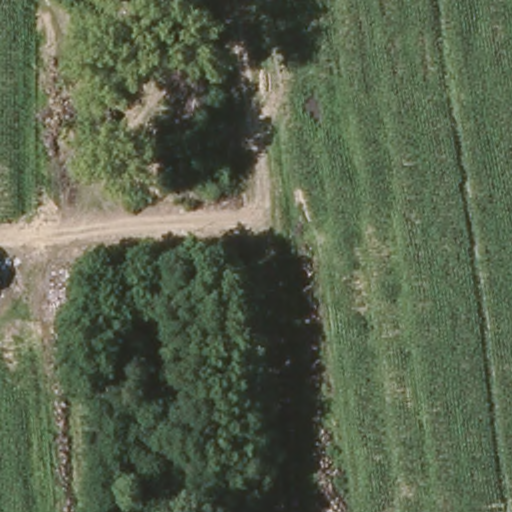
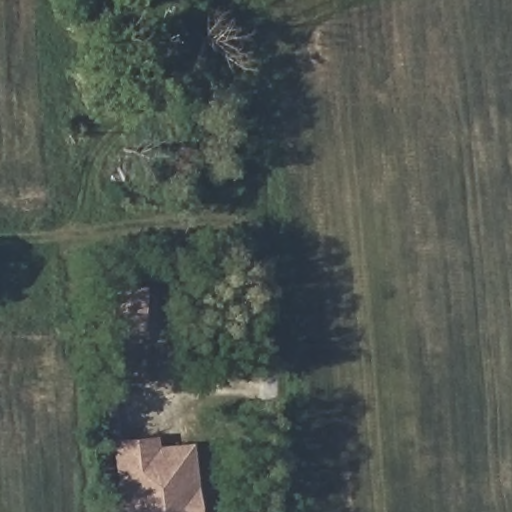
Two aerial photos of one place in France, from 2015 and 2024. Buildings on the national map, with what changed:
new [(201,512),(120,512),(113,440),(158,436),(159,446),(194,442),(201,512)]

